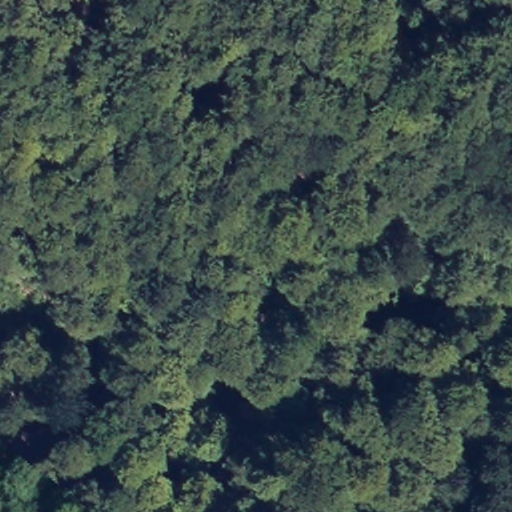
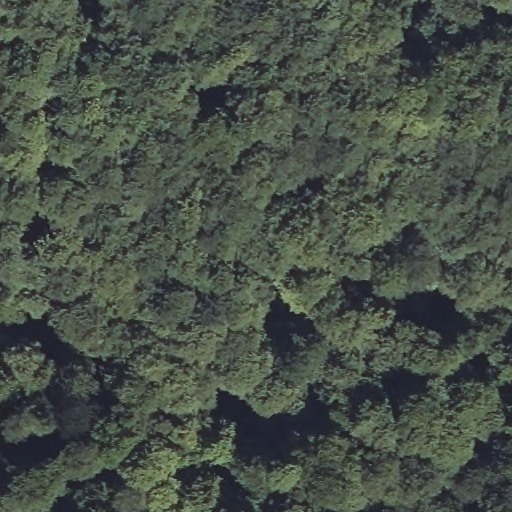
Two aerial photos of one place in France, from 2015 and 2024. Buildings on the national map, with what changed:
unchanged [(507,480),(465,512),(464,512),(441,482),(480,452),(507,480)]

